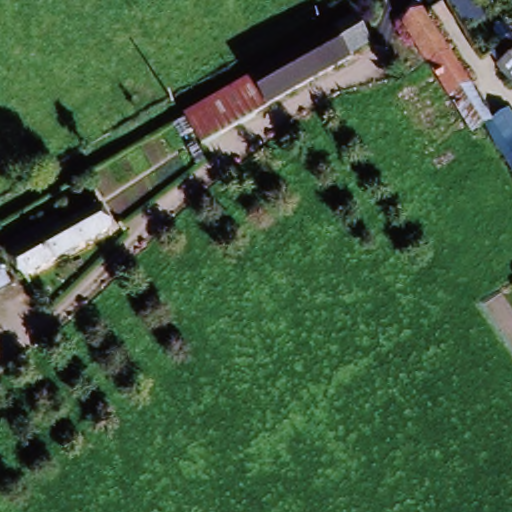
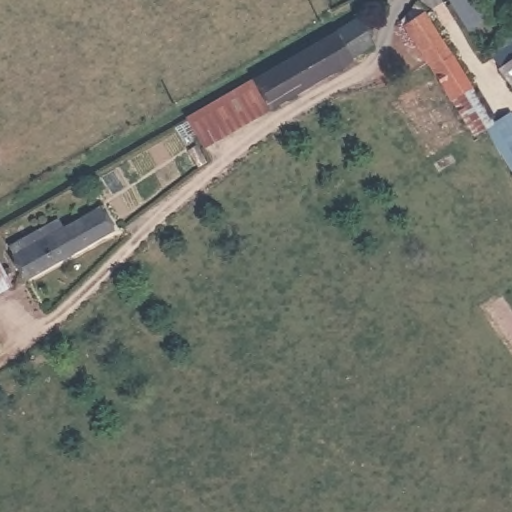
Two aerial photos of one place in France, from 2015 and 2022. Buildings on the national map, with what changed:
unchanged [(402,28),(397,19),(408,0),(418,0),(427,15),(472,93),(450,106),(402,28)]
unchanged [(482,44),(461,0),(479,0),(496,29),(482,44)]
unchanged [(250,76),(355,21),(372,51),(267,108),(250,76)]
unchanged [(512,60),(512,67),(509,62),(512,60)]
unchanged [(250,76),(267,108),(207,141),(190,108),(250,76)]
unchanged [(493,131),(471,144),(450,106),(472,93),(493,131)]
unchanged [(505,135),(490,108),(500,104),(512,125),(512,131),(505,135)]
unchanged [(62,221),(65,229),(97,212),(107,234),(29,276),(13,246),(62,221)]

